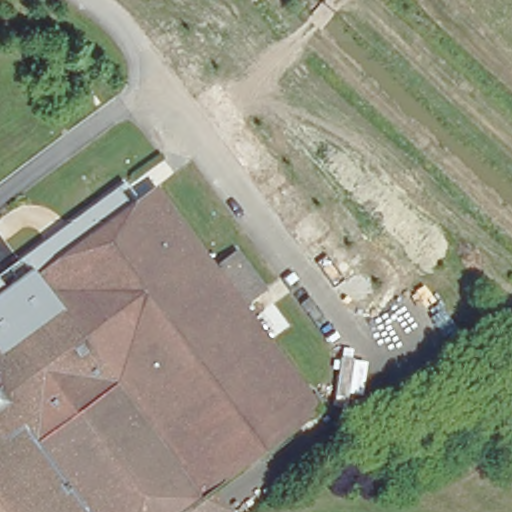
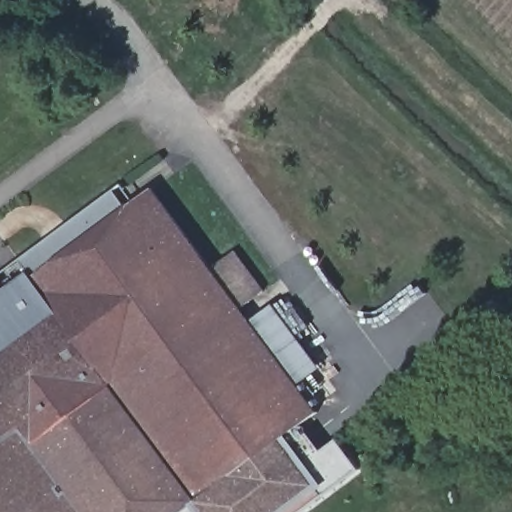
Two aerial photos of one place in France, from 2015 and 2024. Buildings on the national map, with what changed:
unchanged [(28,254),(94,207),(107,198),(117,212),(155,185),(322,407),(302,422),(287,433),(196,502),(25,279),(37,270),(28,254)]
unchanged [(196,502),(197,503),(203,512),(0,512),(0,297),(25,279),(196,502)]
new [(197,503),(287,433),(302,422),(322,450),(338,438),(359,469),(301,512),(203,512),(197,503)]

